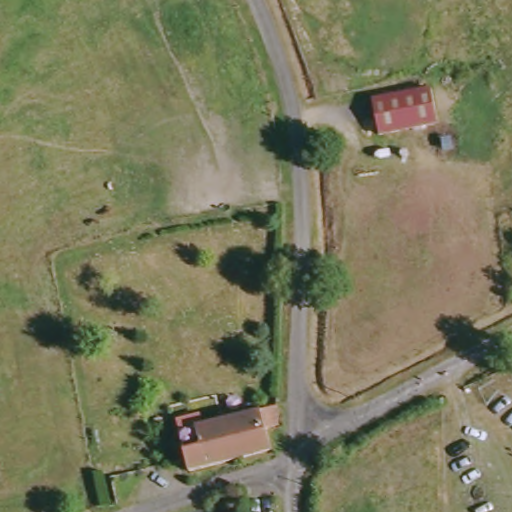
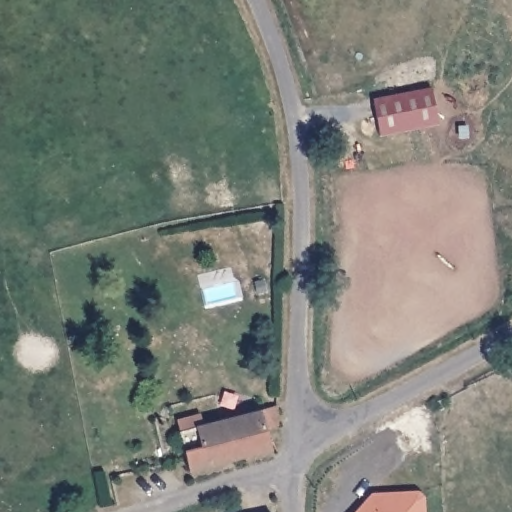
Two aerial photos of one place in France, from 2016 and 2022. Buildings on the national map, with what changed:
unchanged [(373,102),(432,90),(439,124),(380,136),(373,102)]
unchanged [(176,432),(271,404),(276,423),(265,425),(269,448),(186,472),(176,432)]
new [(418,491),(425,497),(425,512),(354,512),(371,493),(418,491)]

